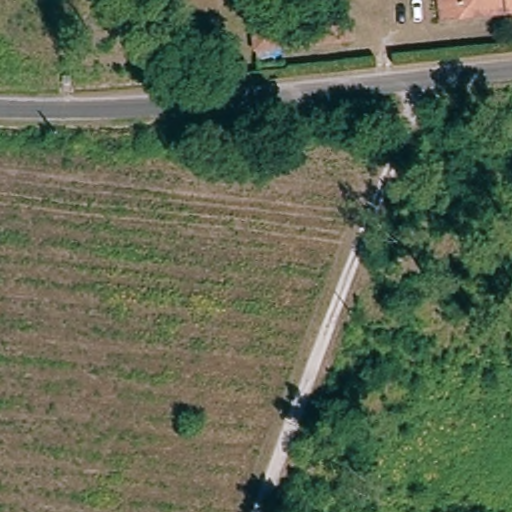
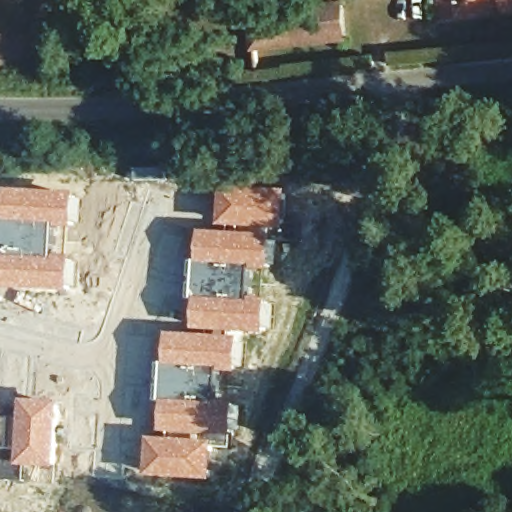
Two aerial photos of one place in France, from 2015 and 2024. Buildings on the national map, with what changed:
unchanged [(512,17),(441,25),(437,1),(444,0),(512,0),(512,17)]
unchanged [(321,11),(338,9),(342,43),(326,45),(317,46),(273,52),(275,72),(253,73),(247,20),(321,11)]
new [(219,183),(291,186),(287,232),(277,231),(219,229),(219,183)]
new [(3,218),(7,187),(80,192),(77,232),(72,232),(71,234),(70,234),(68,252),(58,251),(57,258),(4,256),(0,257),(0,218),(3,218)]
new [(189,259),(199,259),(202,229),(219,229),(277,231),(275,273),(257,272),(255,295),(272,297),(268,335),(245,334),(195,332),(195,299),(191,298),(192,272),(189,271),(189,259)]
new [(4,256),(57,258),(58,251),(68,252),(76,253),(73,293),(1,289),(4,256)]
new [(169,331),(195,332),(245,334),(241,375),(226,374),(224,374),(224,370),(166,361),(169,331)]
new [(166,361),(224,370),(224,374),(226,374),(226,386),(225,399),(225,401),(162,400),(166,361)]
new [(64,403),(58,470),(26,468),(25,481),(0,480),(0,397),(5,397),(2,415),(21,416),(23,398),(64,403)]
new [(151,436),(162,437),(162,400),(225,401),(225,399),(240,401),(234,450),(217,449),(216,481),(149,478),(151,436)]

